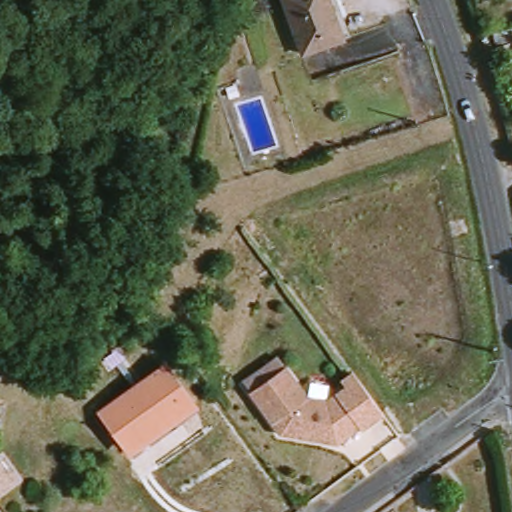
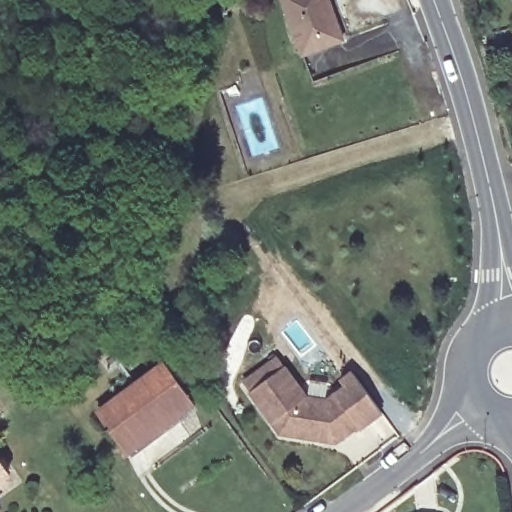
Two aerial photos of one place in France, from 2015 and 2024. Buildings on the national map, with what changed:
unchanged [(301,59),(279,0),(321,0),(338,45),(301,59)]
unchanged [(96,410),(165,357),(200,403),(131,455),(96,410)]
unchanged [(383,411),(359,430),(357,427),(338,443),(332,437),(322,435),(320,443),(282,436),(249,394),(281,368),(305,398),(326,401),(344,386),(339,381),(352,372),(383,411)]
unchanged [(0,462),(12,479),(9,482),(11,487),(0,495),(0,462)]

